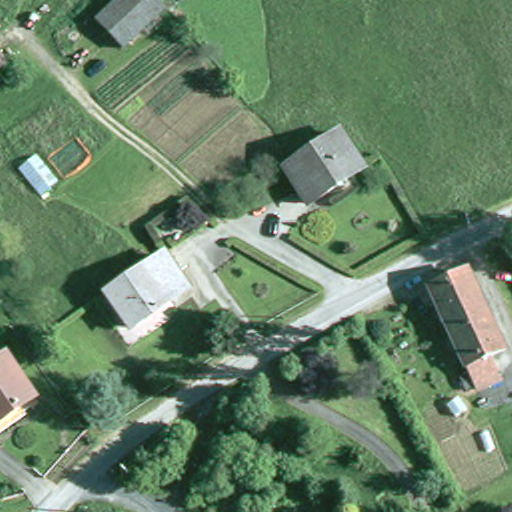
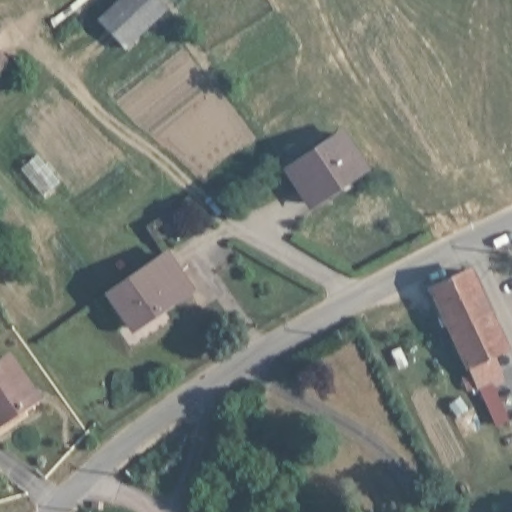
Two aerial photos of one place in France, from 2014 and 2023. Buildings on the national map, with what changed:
unchanged [(167,8),(123,51),(95,22),(119,0),(159,0),(167,8)]
unchanged [(0,70),(0,56),(7,63),(0,70)]
unchanged [(286,169),(337,136),(359,171),(309,203),(286,169)]
unchanged [(113,293),(164,259),(166,258),(191,290),(186,293),(134,328),(113,293)]
unchanged [(433,291),(468,273),(506,354),(484,364),(476,367),(471,370),(433,291)]
unchanged [(38,403),(0,426),(0,366),(10,360),(38,403)]

